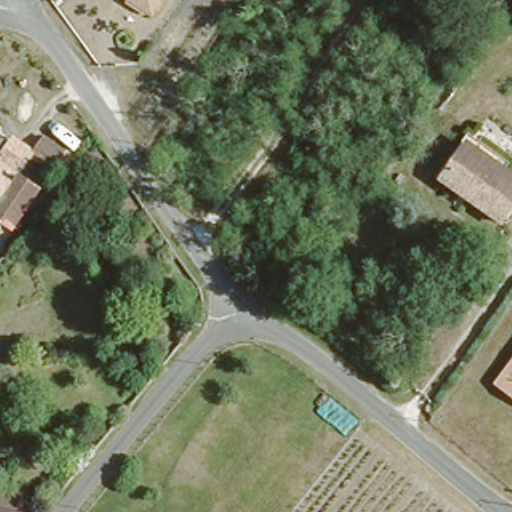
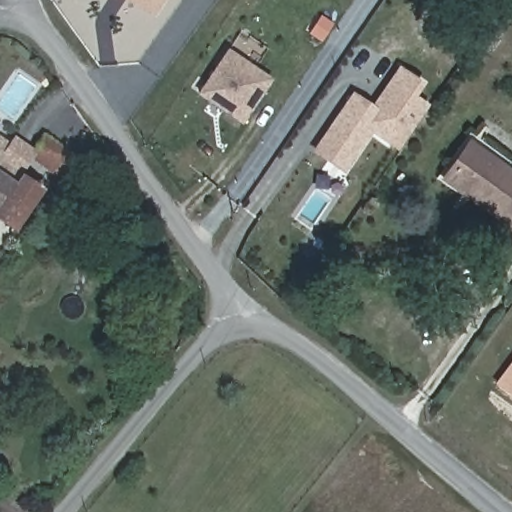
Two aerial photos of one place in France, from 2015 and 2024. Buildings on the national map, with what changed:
unchanged [(151,9),(138,0),(157,0),(151,9)]
new [(232,50),(275,80),(245,123),(202,92),(232,50)]
new [(324,140),(357,92),(377,106),(404,67),(427,82),(417,95),(433,105),(402,150),(375,130),(354,160),(352,159),(344,170),(318,152),(326,141),(324,140)]
unchanged [(66,142),(49,166),(31,153),(48,129),(66,142)]
unchanged [(5,142),(0,150),(0,139),(5,142)]
unchanged [(512,203),(498,222),(438,179),(467,142),(512,175),(512,203)]
unchanged [(22,171),(42,185),(16,221),(14,222),(0,212),(0,200),(22,171)]
unchanged [(512,361),(512,390),(498,380),(512,361)]

